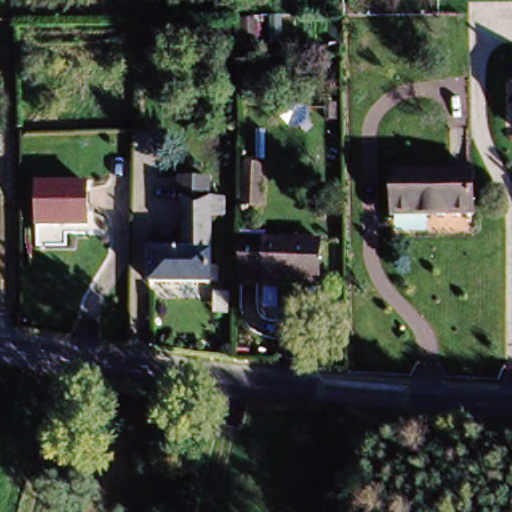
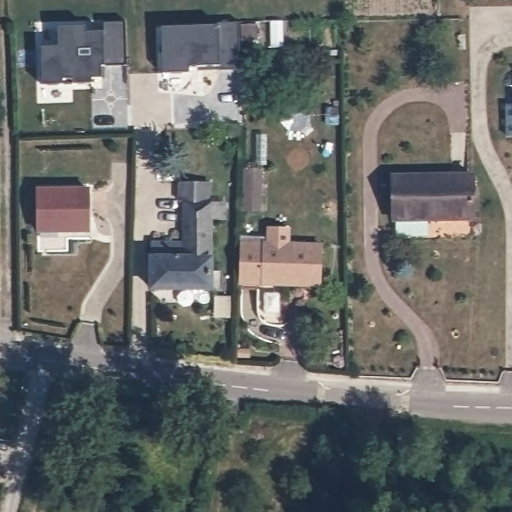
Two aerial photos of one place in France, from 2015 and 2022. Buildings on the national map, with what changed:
new [(105,63),(105,66),(100,66),(102,78),(91,77),(90,82),(74,83),(74,77),(64,79),(64,84),(44,84),(41,47),(60,46),(59,27),(87,27),(87,32),(103,32),(104,22),(125,23),(125,65),(105,63)]
new [(219,66),(189,67),(189,72),(165,73),(162,27),(219,27),(218,23),(241,22),(240,25),(255,24),(255,40),(242,41),(240,69),(219,66)]
unchanged [(260,170),(258,198),(242,197),(245,170),(260,170)]
unchanged [(472,224),(392,225),(392,181),(472,180),(472,224)]
unchanged [(214,194),(214,212),(230,212),(229,231),(215,231),(215,298),(155,298),(155,252),(187,254),(189,212),(184,212),(185,193),(214,194)]
unchanged [(87,195),(87,236),(37,236),(37,195),(87,195)]
unchanged [(291,290),(242,288),(244,248),(325,251),(324,286),(324,291),(291,290)]

